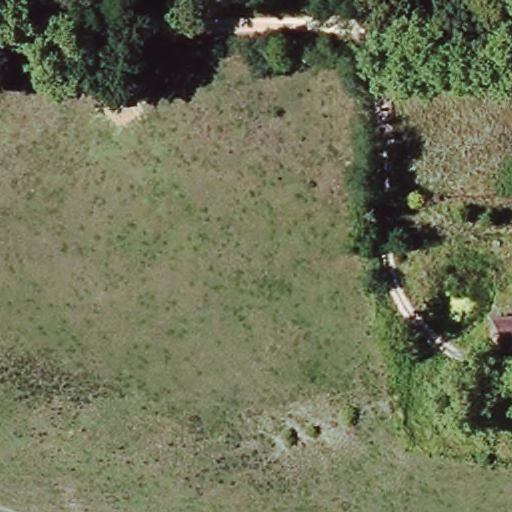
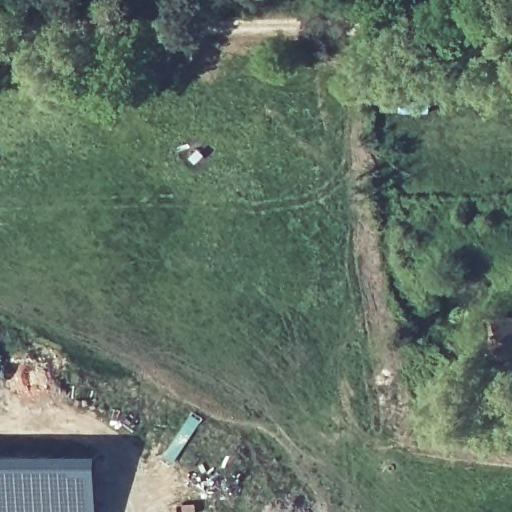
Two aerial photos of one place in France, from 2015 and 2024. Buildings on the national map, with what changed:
unchanged [(512,359),(495,360),(490,317),(512,315),(512,359)]
new [(100,453),(100,512),(0,512),(0,453),(100,453)]

